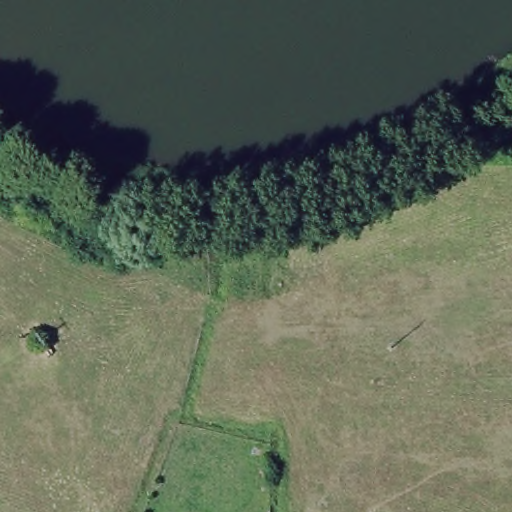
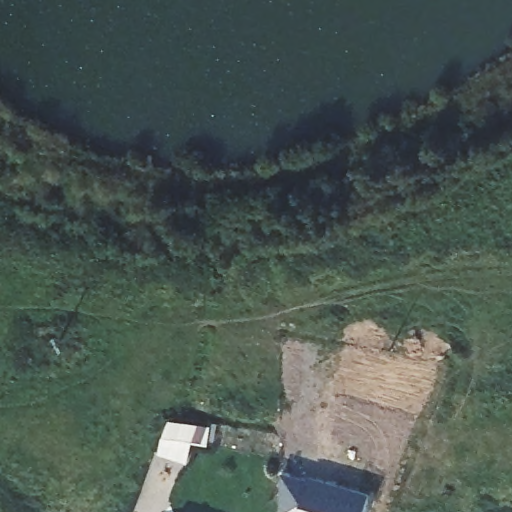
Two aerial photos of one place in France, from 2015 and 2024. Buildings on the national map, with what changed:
new [(186,464),(158,453),(165,421),(217,427),(215,445),(195,443),(186,464)]
new [(282,474),(305,481),(307,477),(368,495),(363,512),(280,512),(282,474)]

